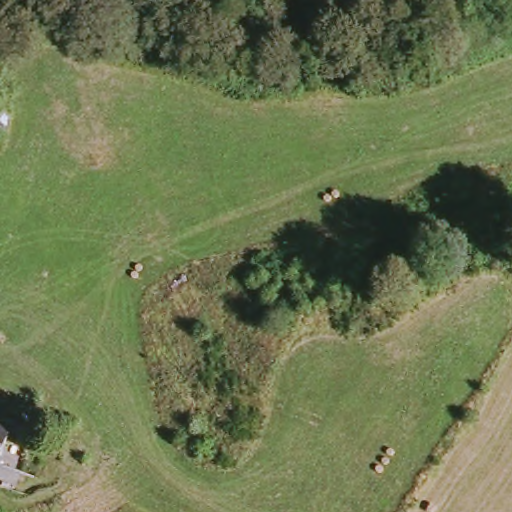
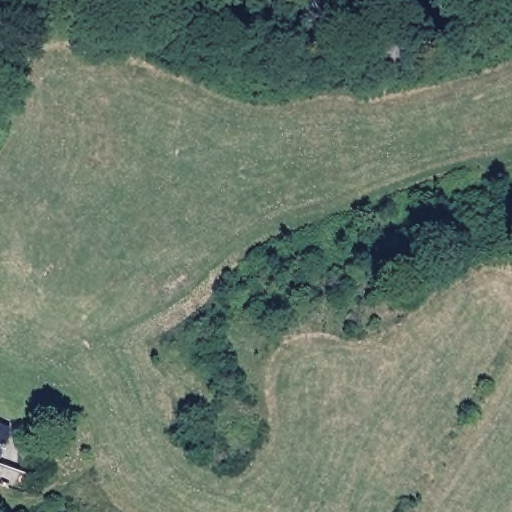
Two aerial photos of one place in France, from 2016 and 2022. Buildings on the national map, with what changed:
unchanged [(19,432),(5,469),(0,467),(0,424),(19,432)]

